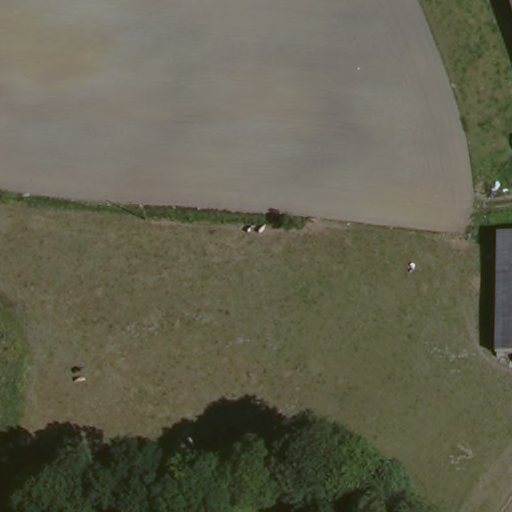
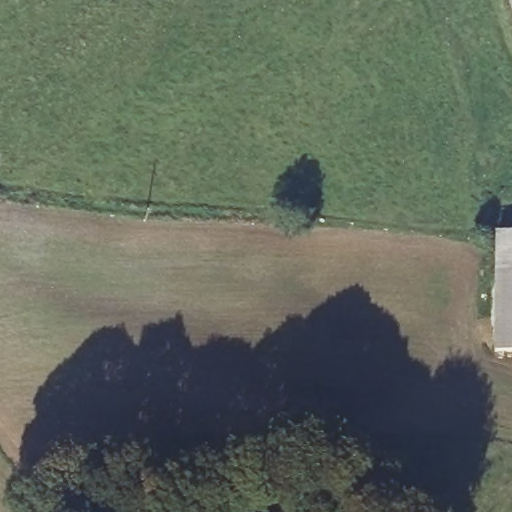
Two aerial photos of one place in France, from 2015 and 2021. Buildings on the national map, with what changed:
unchanged [(512,0),(512,5),(510,0),(512,0)]
unchanged [(512,355),(497,355),(495,243),(512,243),(512,355)]

